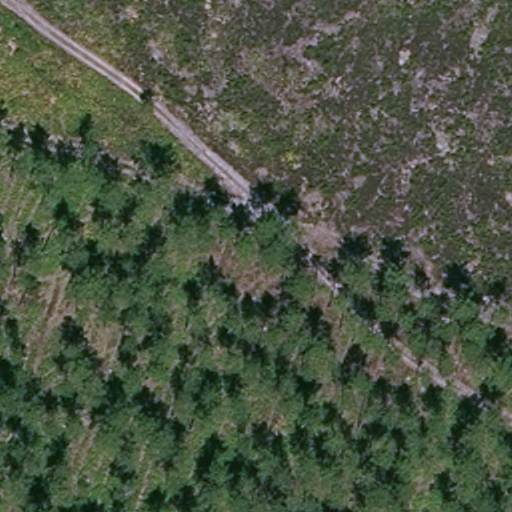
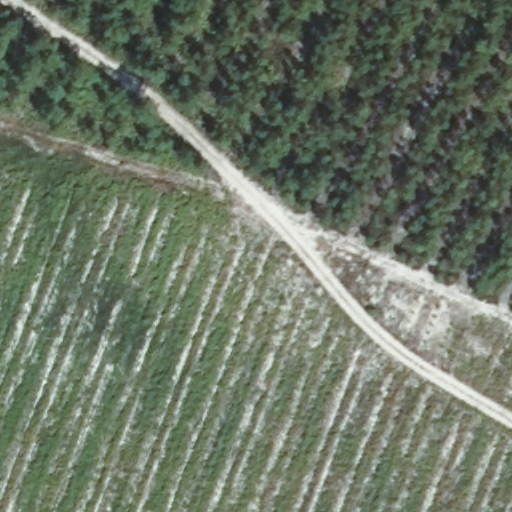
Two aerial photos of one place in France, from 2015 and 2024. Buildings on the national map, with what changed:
[]

